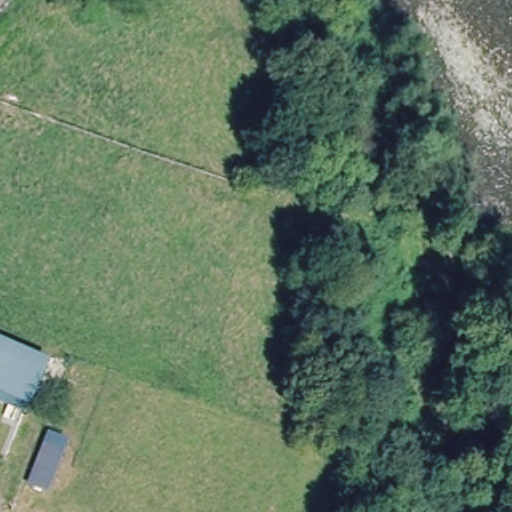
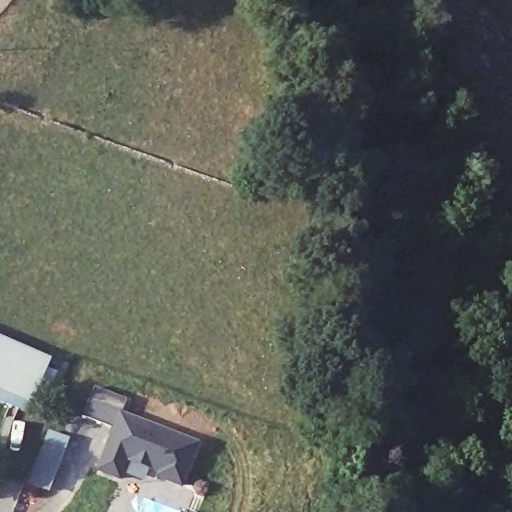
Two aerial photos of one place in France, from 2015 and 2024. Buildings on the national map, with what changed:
unchanged [(47,360),(28,403),(0,390),(0,339),(47,360)]
new [(93,387),(127,400),(121,415),(197,445),(181,486),(157,477),(159,472),(127,460),(119,479),(100,470),(114,430),(81,418),(93,387)]
unchanged [(29,483),(45,445),(49,433),(64,439),(60,451),(45,489),(29,483)]

